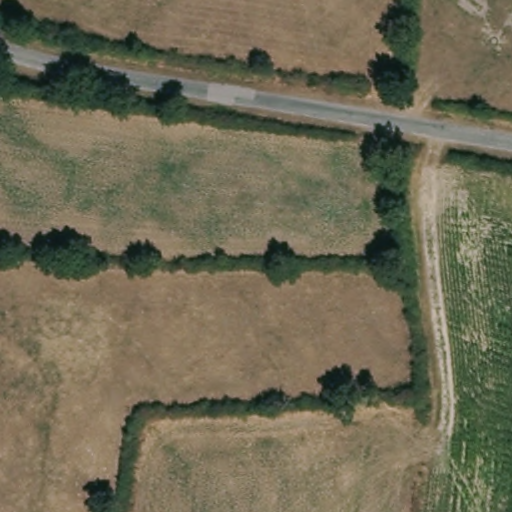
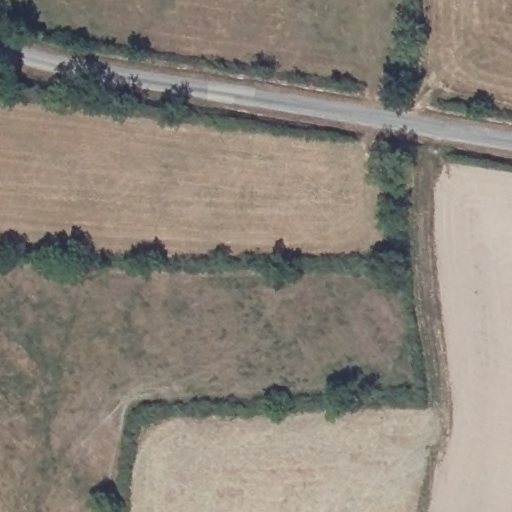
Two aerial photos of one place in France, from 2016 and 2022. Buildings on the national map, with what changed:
[]

